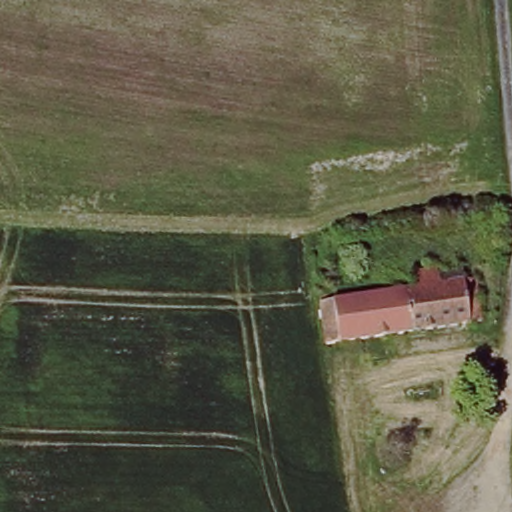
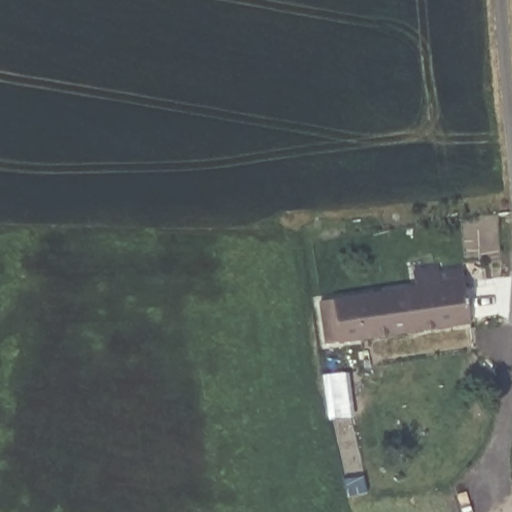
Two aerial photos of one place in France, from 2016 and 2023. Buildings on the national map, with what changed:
unchanged [(417,287),(415,271),(437,267),(438,273),(462,269),(471,322),(326,345),(319,301),(417,287)]

